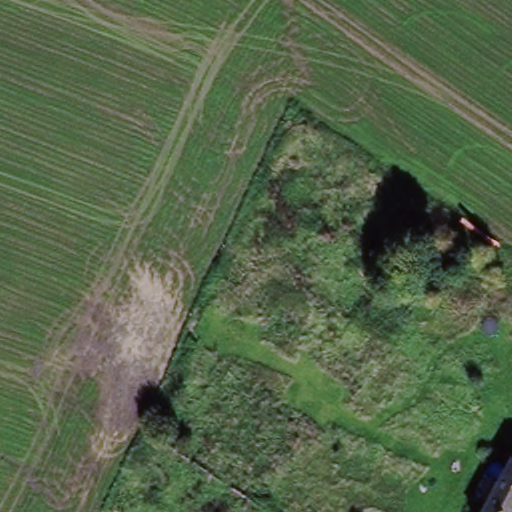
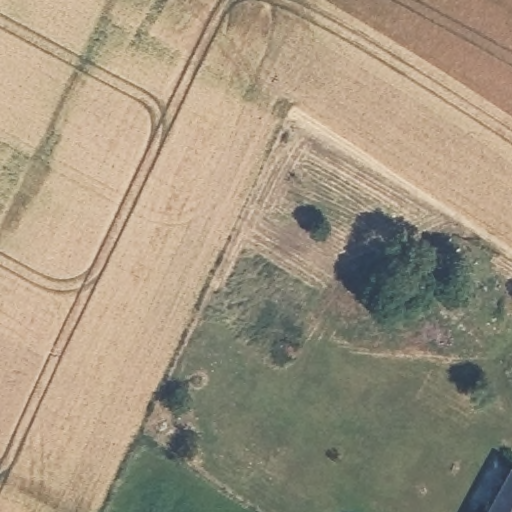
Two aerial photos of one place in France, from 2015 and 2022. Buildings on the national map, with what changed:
unchanged [(490,512),(512,473),(512,512),(490,512)]

